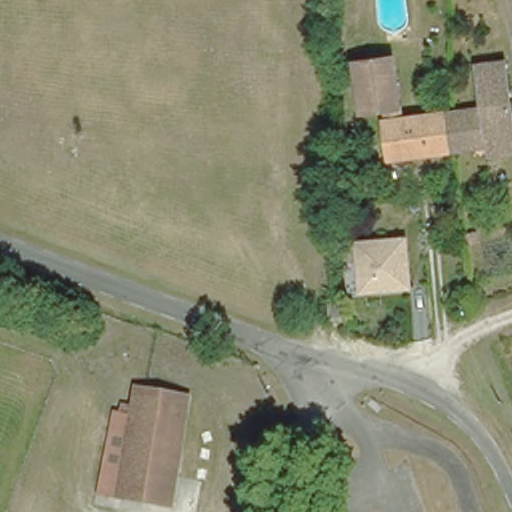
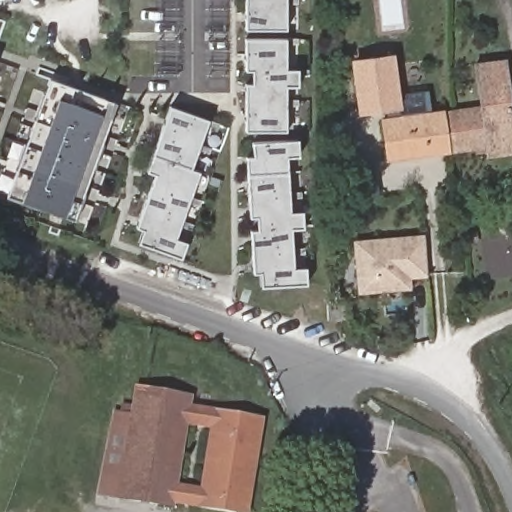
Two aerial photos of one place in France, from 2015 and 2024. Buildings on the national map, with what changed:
new [(287,27),(248,28),(247,0),(288,0),(287,27)]
new [(287,130),(247,129),(247,81),(254,81),(254,68),(248,69),(247,37),(288,38),(288,68),(300,67),(299,86),(287,86),(287,130)]
unchanged [(401,119),(445,113),(450,152),(387,160),(384,121),(392,120),(390,108),(360,113),(353,62),(392,57),(401,119)]
unchanged [(487,147),(450,152),(445,113),(482,108),(477,64),(505,60),(512,113),(512,153),(489,156),(487,147)]
new [(75,220),(9,195),(52,78),(119,103),(75,220)]
new [(201,173),(177,239),(187,243),(182,259),(139,243),(143,231),(137,229),(157,176),(148,172),(172,107),(211,121),(192,170),(201,173)]
new [(305,227),(293,228),(295,267),(307,266),(308,283),(262,286),(261,272),(255,272),(252,229),(258,229),(258,216),(251,217),(247,156),(255,155),(254,141),(300,139),(301,156),(288,156),(292,211),(303,210),(305,227)]
unchanged [(473,243),(465,244),(465,234),(472,233),(473,243)]
unchanged [(414,290),(360,296),(355,239),(408,235),(414,290)]
new [(191,404),(265,417),(249,512),(231,512),(174,503),(173,509),(116,498),(97,495),(113,410),(120,411),(121,403),(132,404),(135,385),(192,396),(191,404)]
demolished [(172,508),(121,500),(140,391),(190,399),(172,508)]

